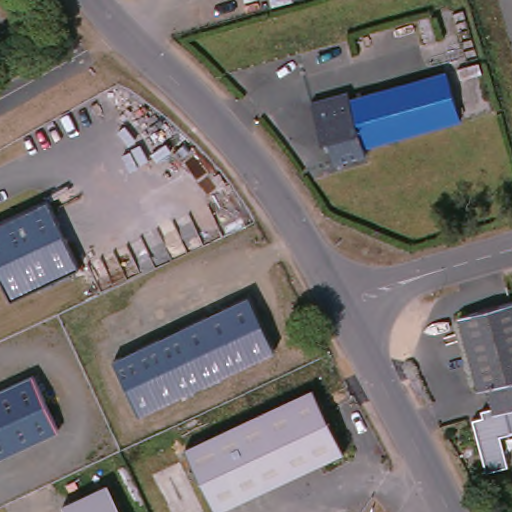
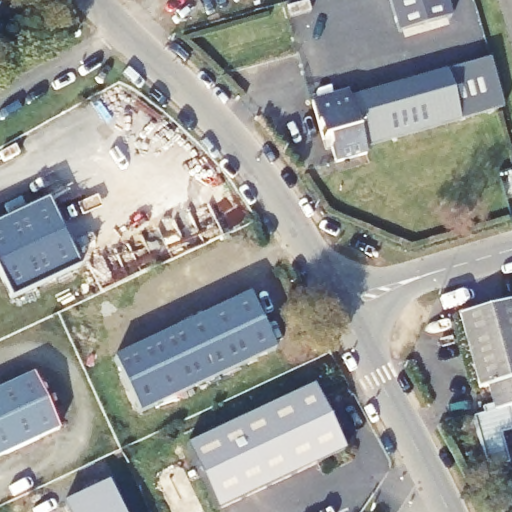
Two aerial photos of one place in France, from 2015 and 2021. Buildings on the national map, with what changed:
new [(447,0),(452,17),(398,32),(388,0),(447,0)]
new [(451,76),(493,65),(506,114),(466,125),(451,76)]
unchanged [(351,96),(352,103),(451,76),(466,125),(369,154),(369,162),(344,169),(335,141),(324,144),(313,107),(351,96)]
unchanged [(81,267),(11,298),(0,277),(0,220),(48,198),(81,267)]
unchanged [(249,294),(276,348),(137,412),(110,357),(249,294)]
unchanged [(498,414),(494,401),(487,402),(461,332),(512,316),(512,416),(501,420),(498,414)]
unchanged [(30,378),(57,432),(0,459),(0,392),(30,378)]
unchanged [(217,511),(186,447),(312,387),(344,452),(217,511)]
unchanged [(501,420),(512,416),(512,437),(504,439),(512,463),(512,470),(489,476),(475,429),(484,426),(483,418),(498,414),(501,420)]
unchanged [(62,503),(108,483),(122,512),(66,512),(62,503)]

